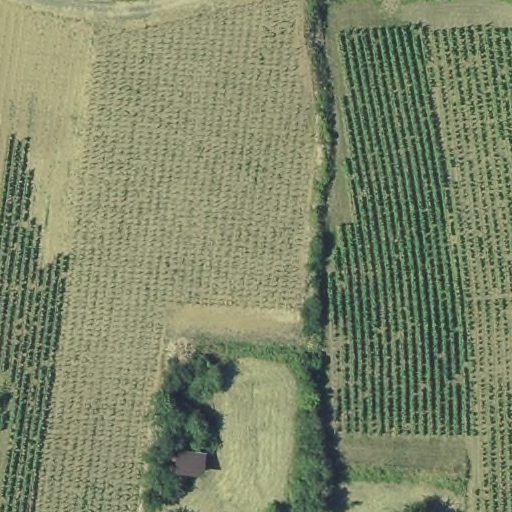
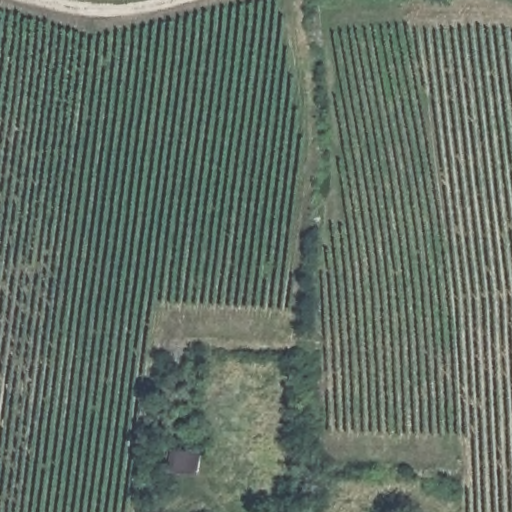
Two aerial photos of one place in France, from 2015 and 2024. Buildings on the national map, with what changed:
unchanged [(177,445),(207,447),(203,476),(174,473),(177,445)]

